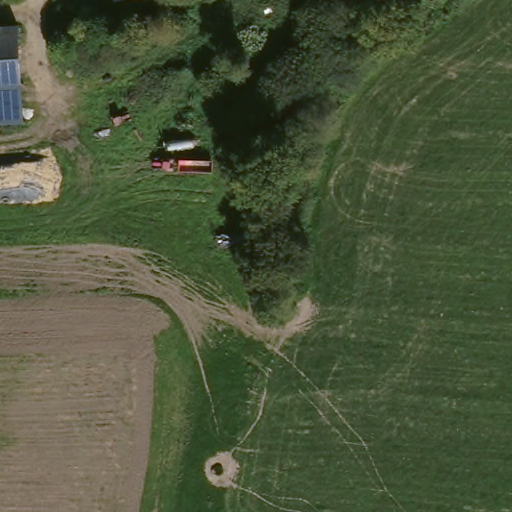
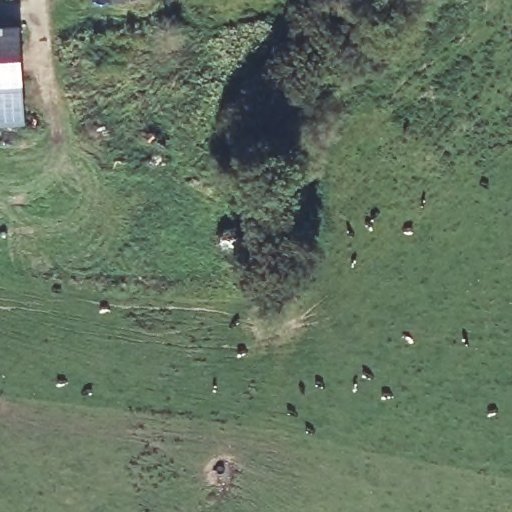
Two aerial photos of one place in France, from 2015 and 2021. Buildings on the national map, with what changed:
unchanged [(119,0),(125,0),(119,1),(119,0)]
unchanged [(28,124),(0,127),(0,27),(13,26),(18,59),(28,124)]

